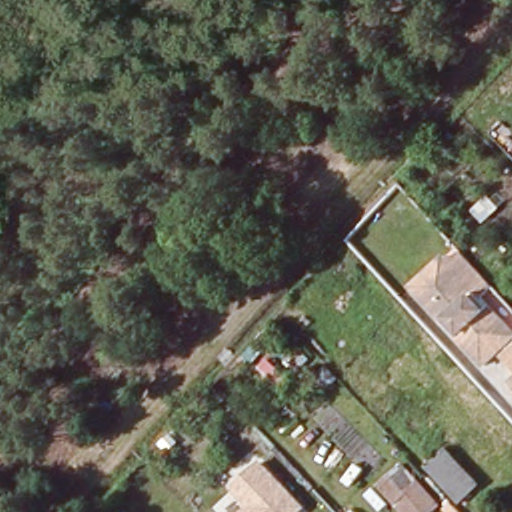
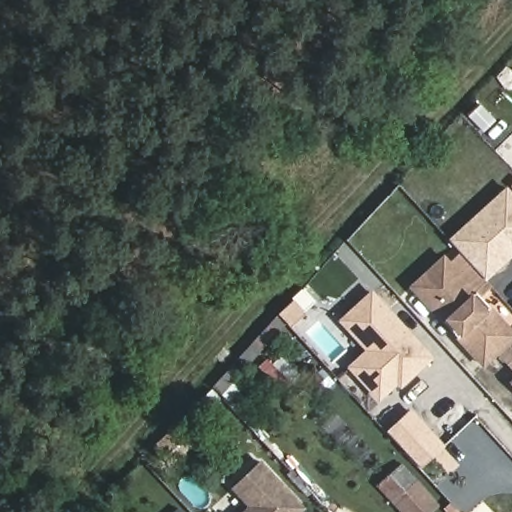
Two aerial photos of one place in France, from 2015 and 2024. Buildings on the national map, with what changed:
new [(507,186),(512,191),(512,256),(485,280),(458,250),(448,239),(507,186)]
demolished [(470,226),(460,215),(469,206),(480,217),(470,226)]
unchanged [(478,295),(512,333),(512,335),(480,363),(454,334),(409,283),(442,254),(447,260),(458,250),(490,285),(478,295)]
new [(339,320),(372,290),(434,358),(400,390),(397,385),(377,400),(347,366),(366,350),(339,320)]
new [(495,350),(512,335),(512,369),(495,350)]
unchanged [(509,381),(512,377),(512,384),(509,381)]
new [(442,447),(418,466),(387,431),(408,411),(442,447)]
unchanged [(456,506),(424,470),(443,452),(476,490),(456,506)]
unchanged [(231,488),(261,460),(306,508),(301,512),(240,512),(247,506),(231,488)]
unchanged [(376,488),(387,477),(401,496),(414,485),(435,510),(432,512),(396,512),(376,488)]

